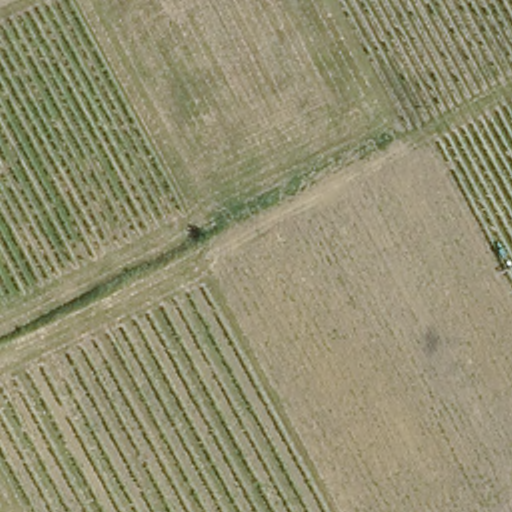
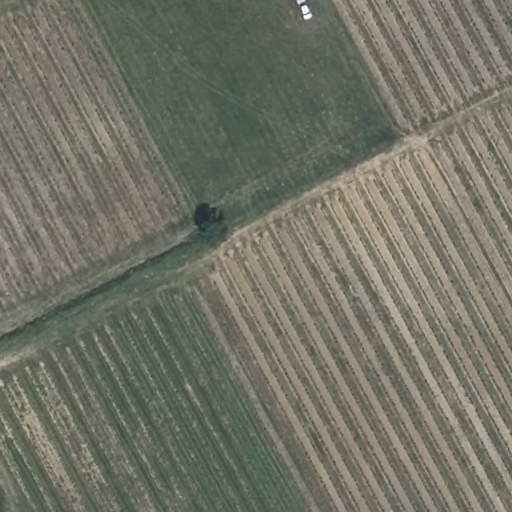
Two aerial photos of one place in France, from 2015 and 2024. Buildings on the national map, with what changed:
[]

